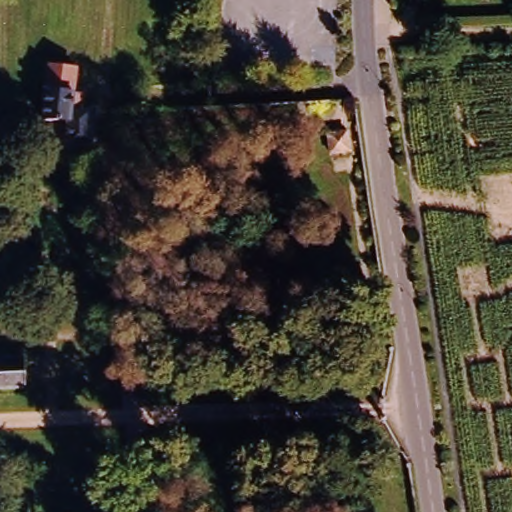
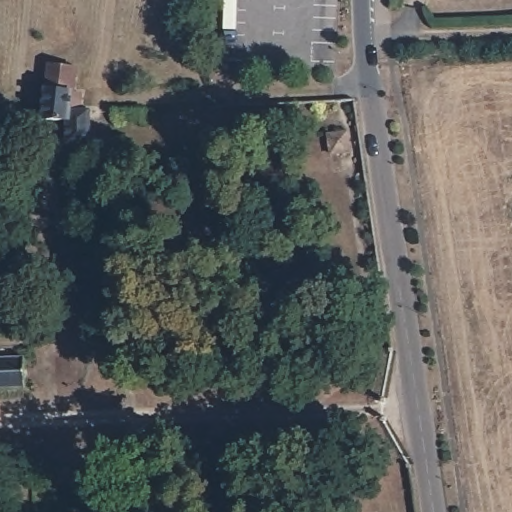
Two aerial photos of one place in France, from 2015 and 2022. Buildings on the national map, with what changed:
unchanged [(92,135),(75,136),(70,136),(67,114),(42,114),(49,64),(78,65),(72,104),(91,105),(92,135)]
unchanged [(23,388),(0,388),(0,359),(22,359),(23,388)]

